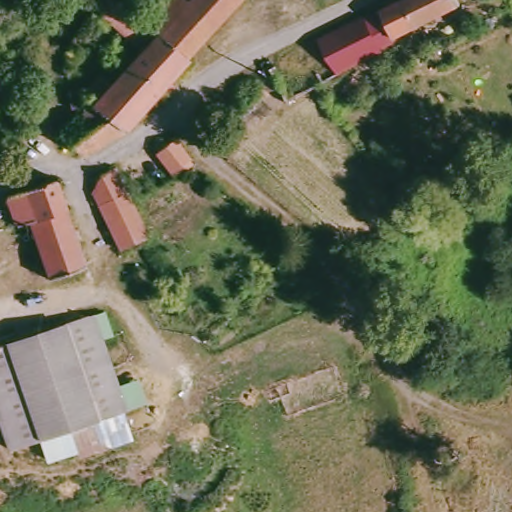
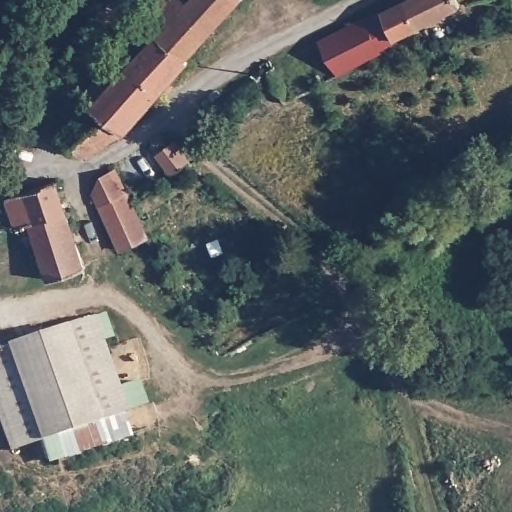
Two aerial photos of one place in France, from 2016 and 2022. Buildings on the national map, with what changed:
unchanged [(142,16),(151,25),(136,40),(100,10),(108,0),(125,0),(142,16)]
unchanged [(188,59),(164,36),(151,25),(142,16),(157,0),(189,0),(193,4),(197,0),(244,0),(188,59)]
unchanged [(320,36),(366,14),(382,5),(385,9),(401,0),(460,0),(437,12),(430,16),(397,32),(399,35),(383,44),(385,48),(342,70),(320,36)]
unchanged [(188,59),(192,62),(128,131),(126,130),(100,105),(164,36),(188,59)]
unchanged [(97,101),(100,105),(126,130),(90,155),(58,132),(72,121),(72,111),(97,101)]
unchanged [(178,137),(195,162),(178,179),(160,154),(178,137)]
unchanged [(133,220),(142,238),(118,251),(90,196),(96,179),(100,179),(110,174),(133,220)]
unchanged [(83,265),(46,276),(26,224),(15,227),(8,195),(56,181),(83,265)]
unchanged [(0,335),(90,305),(127,415),(13,456),(0,418),(0,335)]
unchanged [(127,415),(135,441),(21,479),(13,456),(127,415)]

